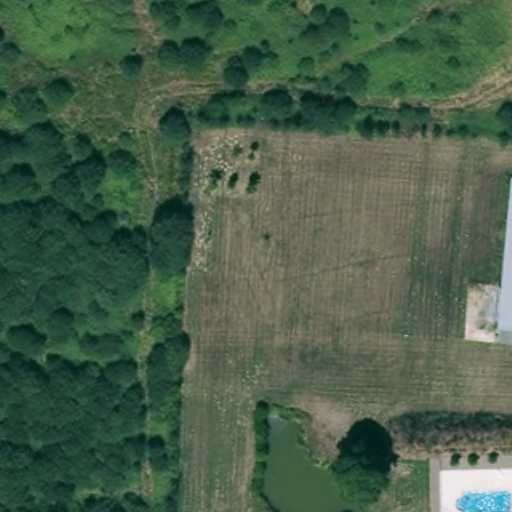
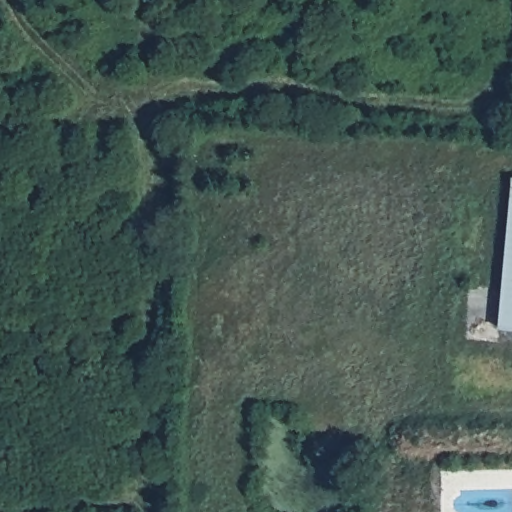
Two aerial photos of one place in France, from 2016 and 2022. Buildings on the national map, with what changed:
unchanged [(506,326),(512,253),(512,327),(506,326)]

